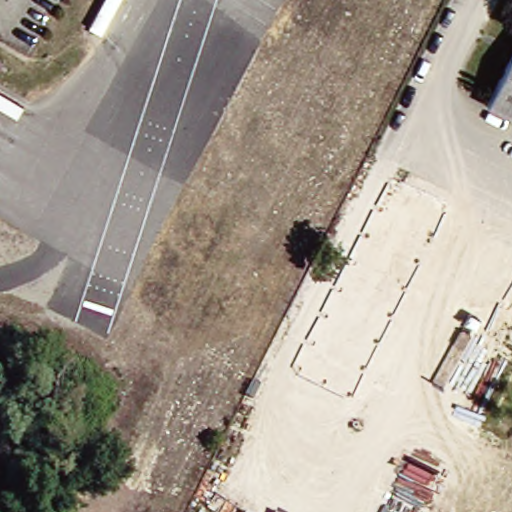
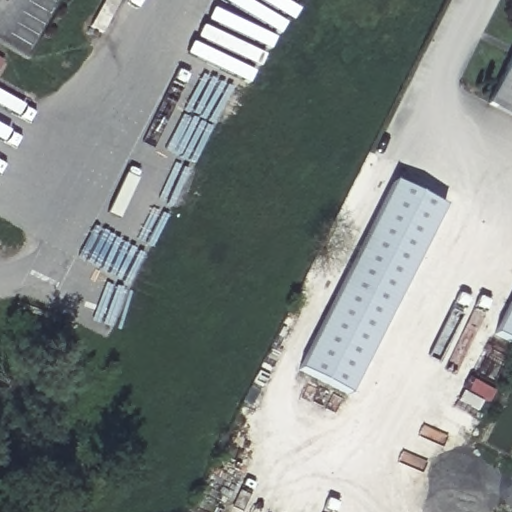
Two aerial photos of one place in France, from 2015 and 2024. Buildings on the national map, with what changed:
unchanged [(481,101),(512,39),(512,117),(481,101)]
new [(446,209),(349,398),(298,372),(394,185),(446,209)]
new [(496,335),(512,303),(512,344),(496,335)]

